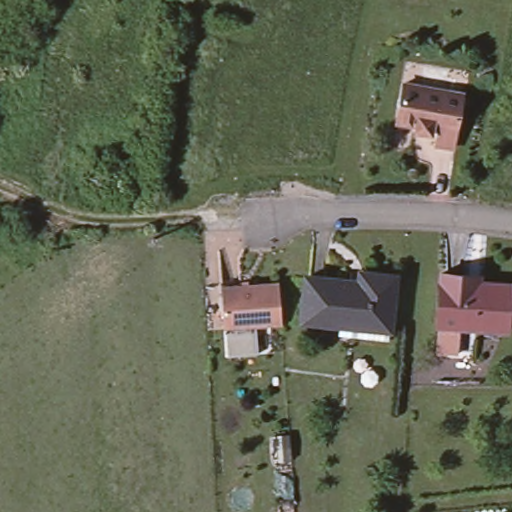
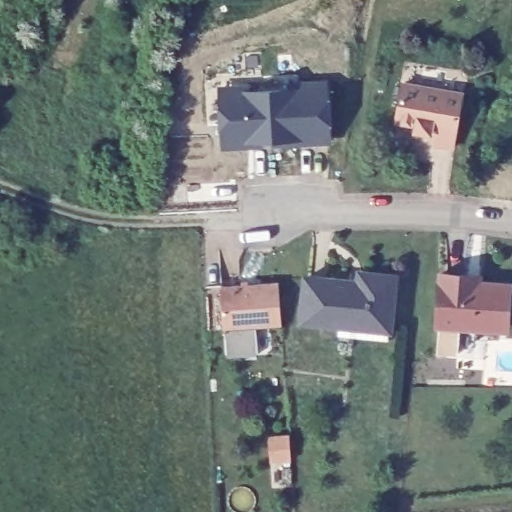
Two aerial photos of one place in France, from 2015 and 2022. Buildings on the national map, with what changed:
new [(222,132),(220,105),(217,86),(330,79),(330,100),(332,125),(332,143),(222,151),(222,132)]
unchanged [(415,130),(417,124),(395,119),(404,80),(432,86),(422,131),(415,130)]
unchanged [(462,92),(452,146),(435,143),(439,128),(430,126),(429,133),(422,131),(432,86),(462,92)]
unchanged [(355,334),(355,324),(302,319),(307,275),(360,280),(362,271),(395,274),(390,327),(389,337),(355,334)]
unchanged [(477,276),(476,280),(507,283),(504,329),(472,327),(435,325),(434,324),(437,273),(477,276)]
unchanged [(280,280),(283,323),(225,327),(222,284),(280,280)]
new [(440,325),(477,327),(475,357),(438,355),(440,325)]
unchanged [(275,460),(274,435),(290,434),(292,459),(275,460)]

